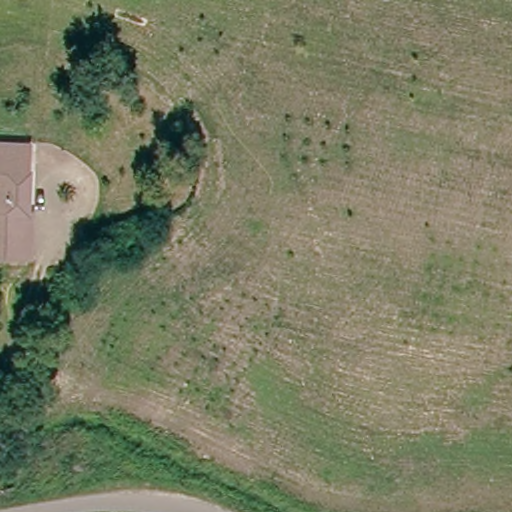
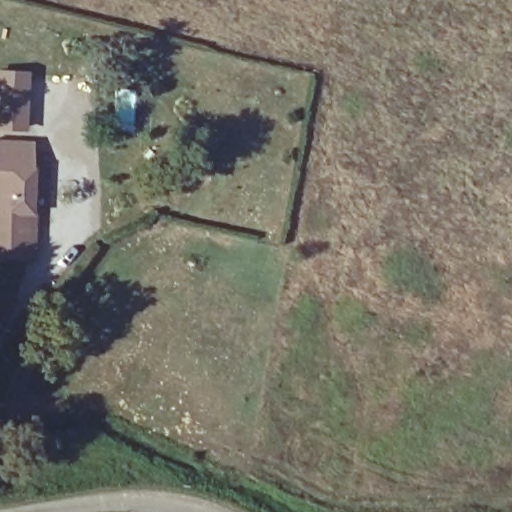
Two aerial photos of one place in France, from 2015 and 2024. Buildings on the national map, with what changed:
new [(26,132),(0,131),(0,71),(29,72),(26,132)]
unchanged [(35,147),(31,255),(0,254),(0,146),(35,147)]

